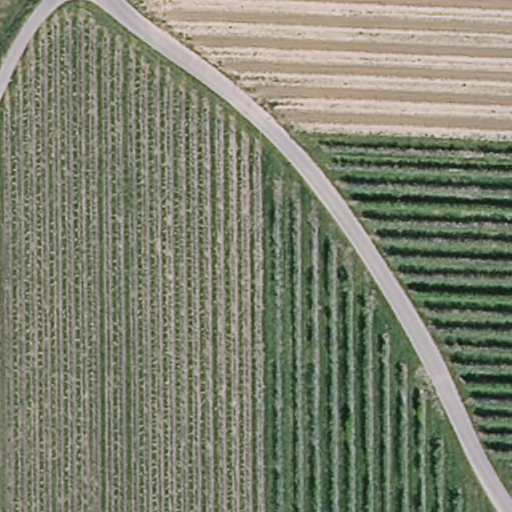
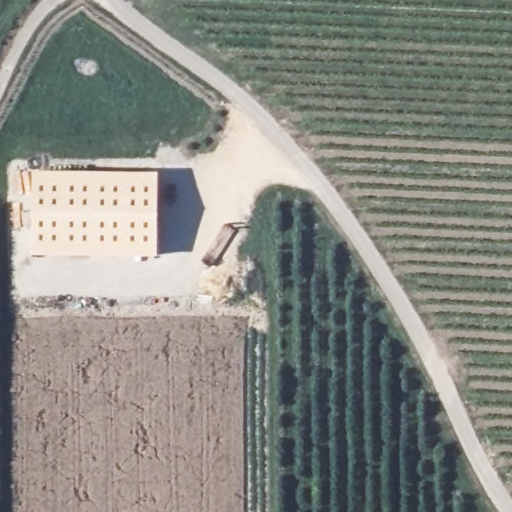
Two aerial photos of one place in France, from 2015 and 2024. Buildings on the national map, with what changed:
new [(157,257),(32,255),(33,171),(157,172),(157,257)]

